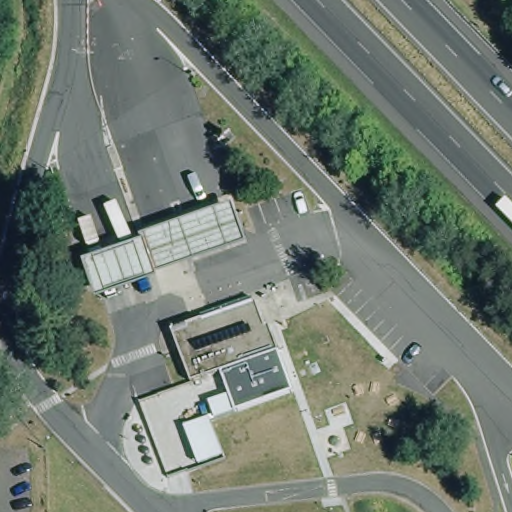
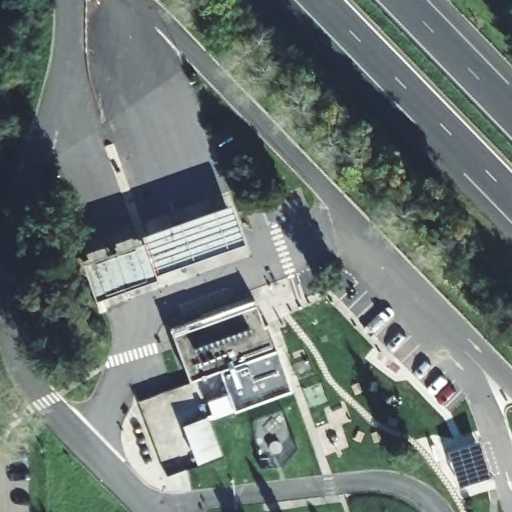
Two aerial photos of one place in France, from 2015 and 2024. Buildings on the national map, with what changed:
unchanged [(85,256),(142,239),(139,224),(232,195),(246,238),(153,265),(156,279),(95,295),(85,256)]
unchanged [(261,318),(266,315),(276,342),(187,376),(168,327),(242,299),(253,295),(257,306),(261,318)]
unchanged [(287,387),(233,409),(208,416),(202,397),(226,389),(218,364),(276,342),(287,387)]
unchanged [(221,454),(197,464),(180,426),(209,416),(221,454)]

